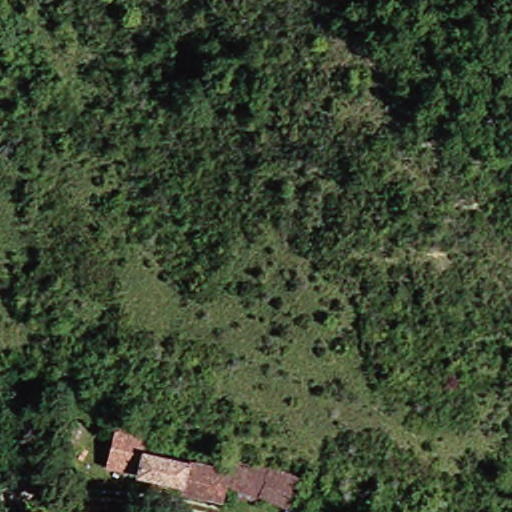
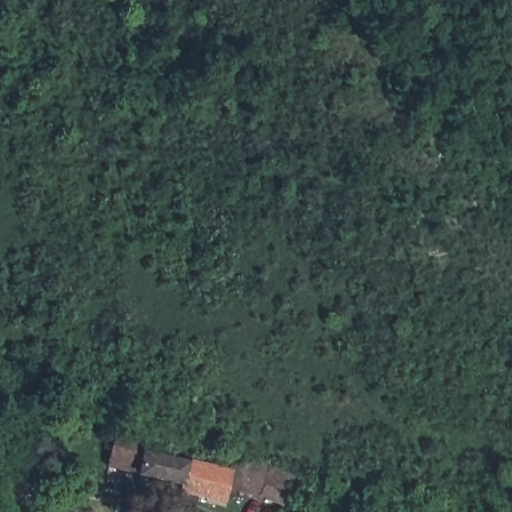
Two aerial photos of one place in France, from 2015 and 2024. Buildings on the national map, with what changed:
unchanged [(134,473),(105,467),(113,430),(141,435),(139,451),(134,473)]
unchanged [(239,491),(222,487),(219,498),(175,490),(175,483),(134,473),(139,451),(224,468),(226,458),(245,462),(239,491)]
unchanged [(239,491),(245,462),(291,473),(285,502),(239,491)]

